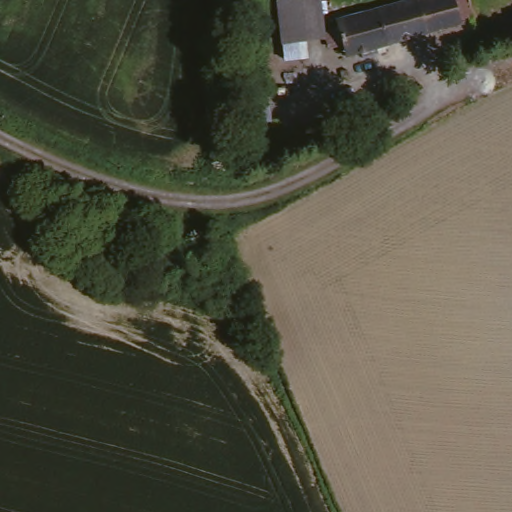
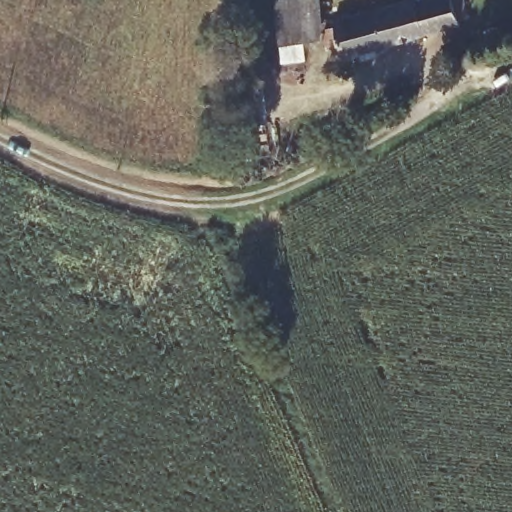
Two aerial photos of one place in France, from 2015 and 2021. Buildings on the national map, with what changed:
unchanged [(346,65),(340,47),(279,55),(274,2),(294,0),(325,0),(327,24),(433,0),(466,0),(472,25),(407,51),(346,65)]

